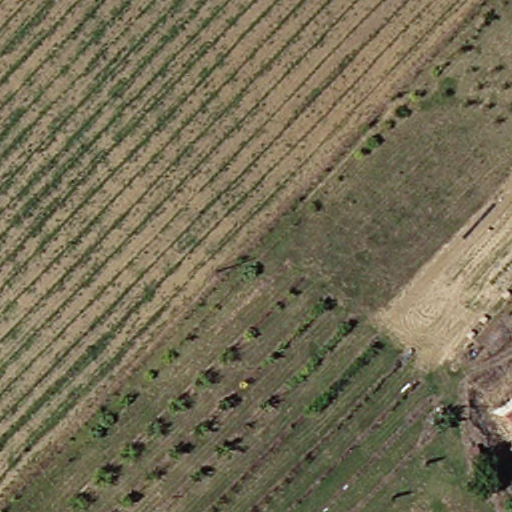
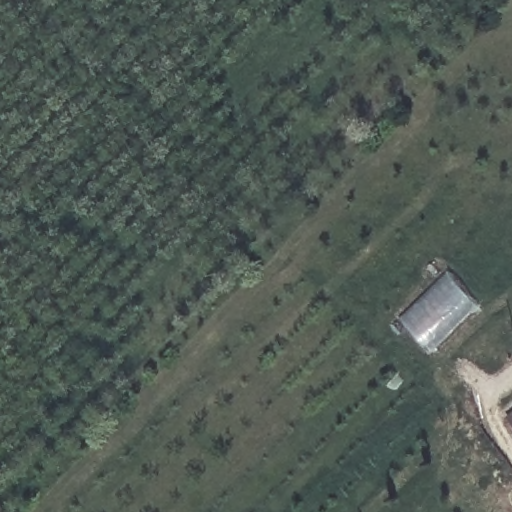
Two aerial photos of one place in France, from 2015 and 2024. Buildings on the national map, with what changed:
new [(431,351),(401,317),(449,270),(479,305),(431,351)]

